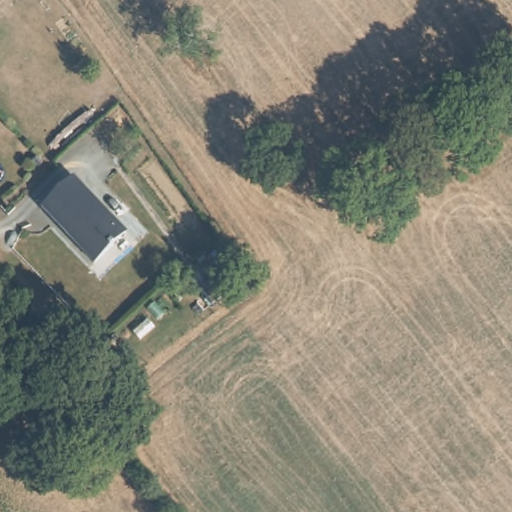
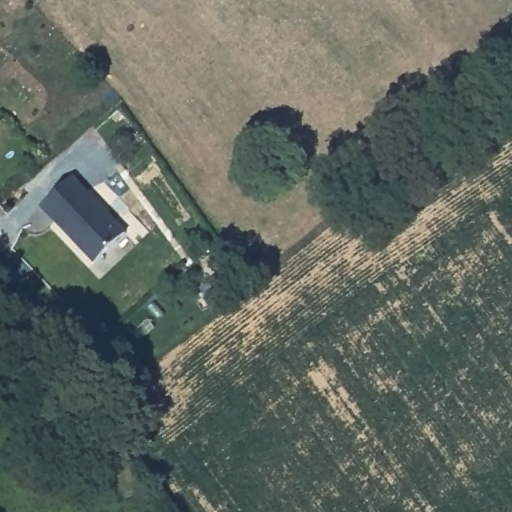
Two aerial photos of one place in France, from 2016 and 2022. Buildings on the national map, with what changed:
unchanged [(39,209),(74,175),(130,234),(97,265),(39,209)]

